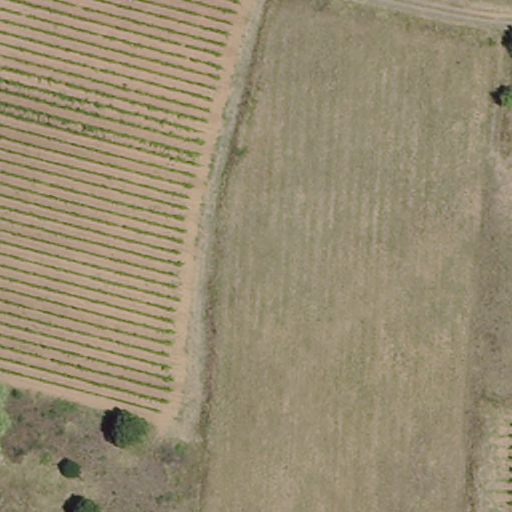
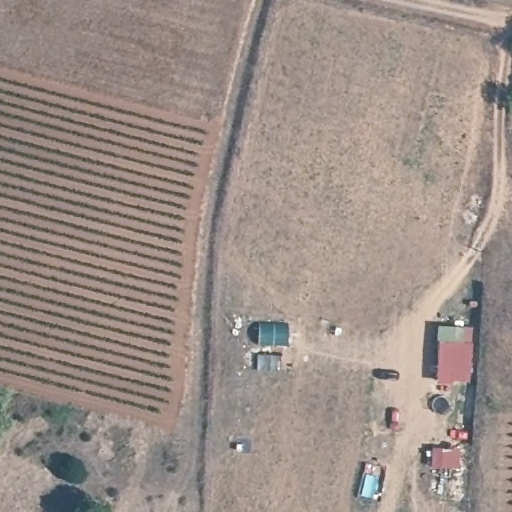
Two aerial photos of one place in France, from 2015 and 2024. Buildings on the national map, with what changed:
new [(471,341),(465,382),(433,382),(437,339),(471,341)]

